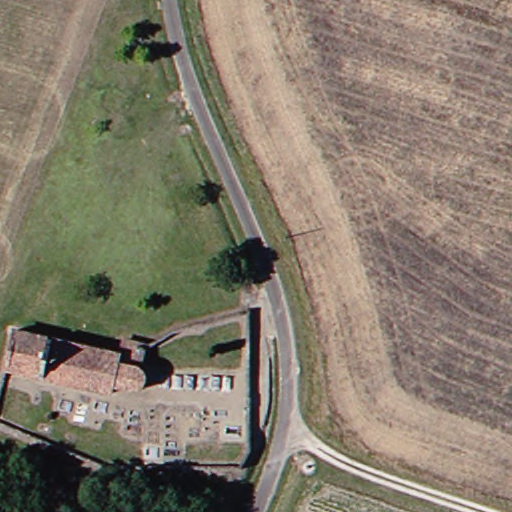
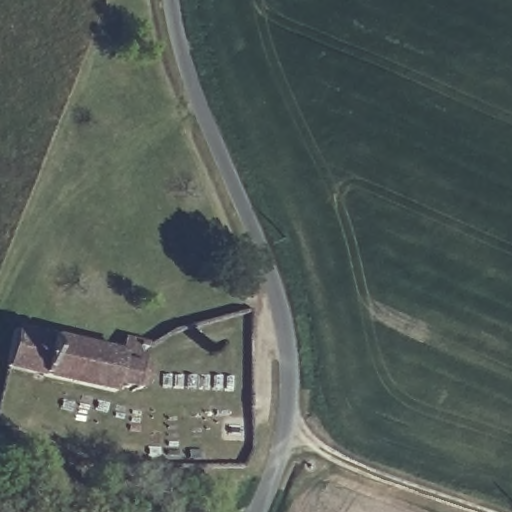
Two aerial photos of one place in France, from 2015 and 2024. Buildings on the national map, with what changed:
unchanged [(12,330),(119,350),(123,337),(140,339),(133,363),(143,365),(139,391),(112,387),(110,395),(4,368),(12,330)]

